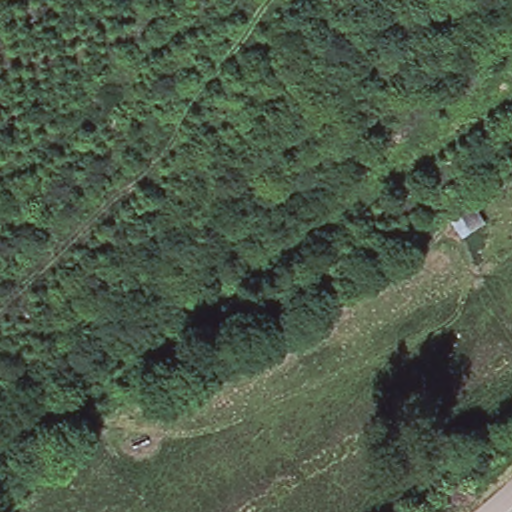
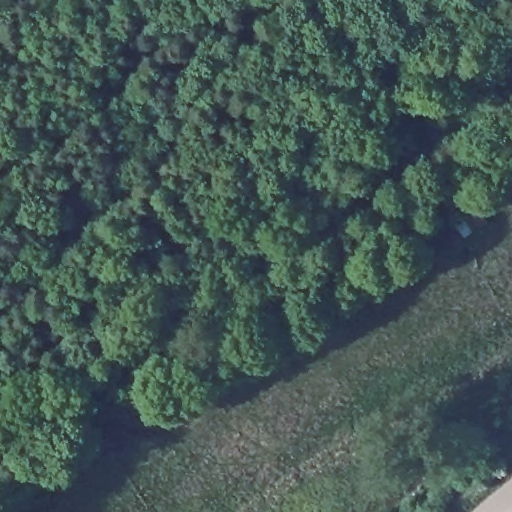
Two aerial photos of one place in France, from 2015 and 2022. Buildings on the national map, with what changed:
unchanged [(465,237),(455,224),(478,209),(487,224),(465,237)]

